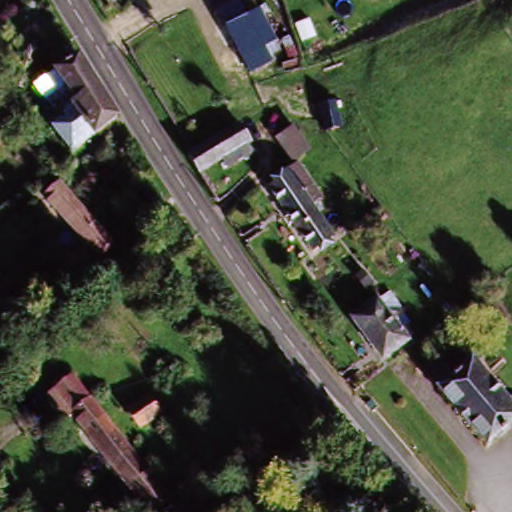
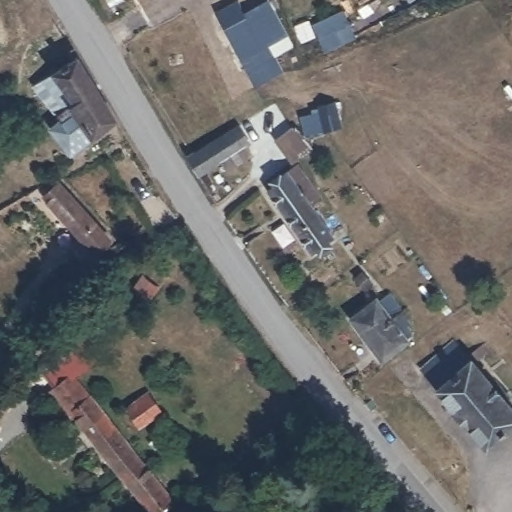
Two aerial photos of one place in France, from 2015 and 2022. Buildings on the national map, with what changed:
unchanged [(217,19),(238,8),(262,56),(242,68),(217,19)]
unchanged [(45,97),(36,85),(54,74),(77,60),(117,122),(72,149),(57,160),(33,124),(50,114),(45,97)]
unchanged [(280,84),(291,102),(274,112),(262,92),(280,84)]
unchanged [(325,91),(337,86),(347,111),(334,114),(325,91)]
unchanged [(283,127),(296,118),(308,135),(296,144),(283,127)]
unchanged [(232,177),(224,164),(208,174),(205,167),(191,175),(182,162),(211,145),(236,130),(247,150),(242,153),(249,167),(232,177)]
unchanged [(303,203),(322,236),(299,249),(264,188),(301,167),(317,195),(303,203)]
unchanged [(56,189),(90,228),(74,242),(40,203),(56,189)]
unchanged [(369,246),(377,257),(366,266),(357,255),(369,246)]
unchanged [(345,322),(370,306),(380,299),(388,293),(397,305),(405,321),(400,326),(406,334),(395,341),(372,358),(345,322)]
unchanged [(469,356),(435,382),(419,361),(452,336),(469,356)]
unchanged [(469,356),(512,412),(512,421),(483,442),(435,382),(469,356)]
unchanged [(160,497),(141,511),(69,412),(59,420),(42,397),(52,389),(55,393),(74,379),(160,497)]
unchanged [(138,422),(127,409),(145,395),(155,409),(138,422)]

